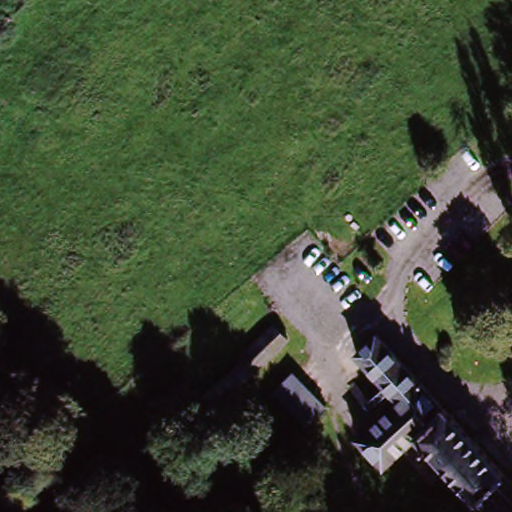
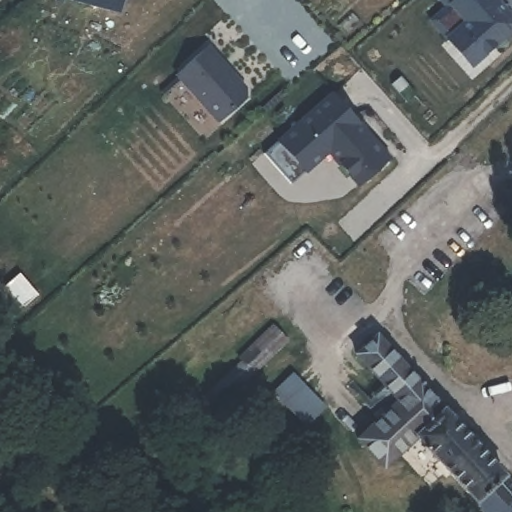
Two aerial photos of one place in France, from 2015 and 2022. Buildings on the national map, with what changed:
new [(122,15),(69,2),(69,0),(125,0),(122,15)]
new [(512,15),(512,33),(470,68),(445,40),(427,21),(443,8),(437,0),(498,0),(511,14),(512,15)]
new [(247,86),(247,96),(217,123),(173,74),(208,44),(247,86)]
new [(390,158),(357,188),(327,154),(292,184),(264,154),(331,93),(390,158)]
unchanged [(233,392),(222,381),(272,332),(283,343),(233,392)]
unchanged [(449,478),(437,465),(442,460),(421,438),(390,467),(363,438),(391,412),(377,398),(392,384),(366,357),(382,341),(512,483),(512,512),(490,512),(453,473),(449,478)]
unchanged [(308,427),(272,393),(295,373),(330,410),(308,427)]

